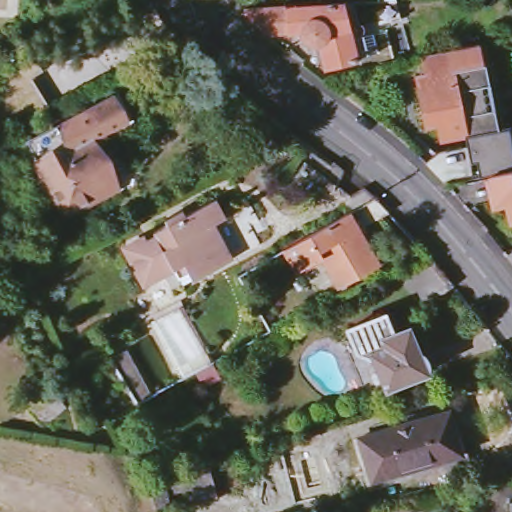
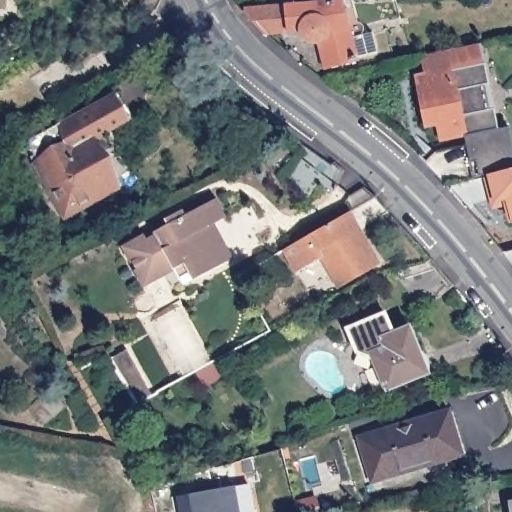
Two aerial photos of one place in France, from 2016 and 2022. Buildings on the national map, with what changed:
unchanged [(245,13),(244,7),(323,2),(353,1),(359,23),(351,25),(359,61),(325,69),(319,41),(318,42),(316,43),(313,44),(309,42),(307,42),(306,41),(305,39),(304,37),(303,35),(303,34),(302,32),(287,34),(275,34),(266,35),(245,13)]
unchanged [(420,52),(420,50),(449,45),(481,40),(494,129),(460,134),(459,132),(437,135),(434,119),(430,120),(421,121),(416,90),(425,89),(420,52)]
unchanged [(39,164),(29,144),(48,132),(92,107),(117,147),(98,157),(114,189),(68,214),(39,164)]
unchanged [(328,162),(303,194),(279,175),(303,143),(328,162)]
unchanged [(503,196),(497,171),(512,167),(512,201),(510,194),(503,196)]
unchanged [(452,182),(497,171),(503,196),(470,203),(452,182)]
unchanged [(166,273),(148,283),(127,247),(146,236),(148,239),(157,234),(155,231),(170,222),(168,216),(185,207),(188,211),(218,194),(228,214),(218,220),(237,255),(197,277),(187,262),(177,267),(186,283),(176,290),(166,273)]
unchanged [(374,197),(388,212),(358,229),(378,265),(341,285),(323,257),(298,271),(286,250),(310,236),(374,197)]
unchanged [(439,266),(449,279),(424,299),(413,285),(434,267),(439,266)]
unchanged [(374,358),(358,354),(348,331),(385,315),(394,333),(403,330),(413,352),(419,350),(428,372),(388,390),(374,358)]
unchanged [(134,351),(159,395),(145,403),(108,364),(134,351)]
unchanged [(378,478),(363,437),(450,410),(466,450),(378,478)]
demolished [(197,504),(189,481),(209,475),(217,498),(197,504)]
new [(249,483),(258,512),(185,512),(180,497),(249,483)]
unchanged [(512,497),(512,512),(510,512),(508,498),(512,497)]

